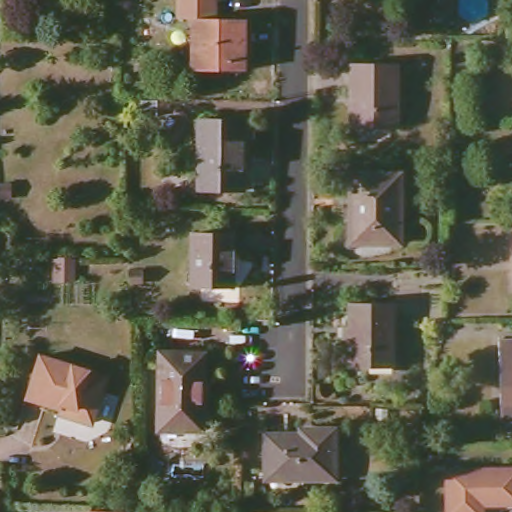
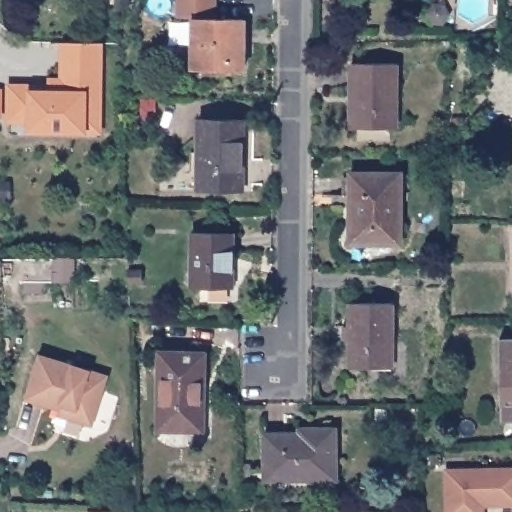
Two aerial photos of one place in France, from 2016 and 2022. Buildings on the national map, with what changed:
new [(175,16),(175,0),(215,0),(216,17),(195,17),(175,16)]
unchanged [(246,68),(195,67),(195,17),(245,17),(246,68)]
new [(102,43),(101,136),(82,136),(83,132),(26,131),(26,125),(5,124),(6,83),(27,84),(29,90),(47,89),(47,77),(59,77),(59,42),(102,43)]
unchanged [(397,128),(353,128),(352,63),(397,64),(397,128)]
unchanged [(245,184),(202,184),(202,115),(244,115),(245,184)]
unchanged [(401,242),(352,241),(352,174),(402,173),(401,242)]
unchanged [(236,287),(196,287),(196,233),(236,233),(236,287)]
unchanged [(392,299),(392,368),(350,368),(351,299),(392,299)]
unchanged [(501,406),(500,332),(512,332),(512,407),(501,406)]
unchanged [(204,355),(203,431),(160,430),(160,354),(204,355)]
unchanged [(112,381),(102,422),(92,426),(73,421),(76,410),(69,408),(67,413),(32,403),(45,360),(112,381)]
unchanged [(337,430),(339,478),(302,478),(302,473),(268,473),(267,436),(302,436),(302,430),(337,430)]
unchanged [(492,504),(492,500),(485,500),(485,512),(448,512),(447,470),(512,467),(512,504),(492,504)]
unchanged [(120,508),(120,512),(87,512),(87,508),(120,508)]

